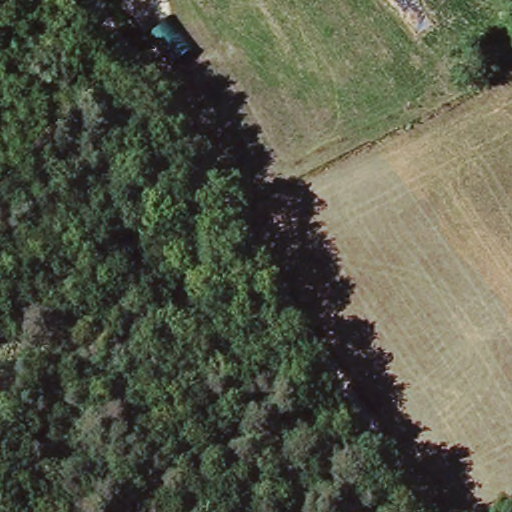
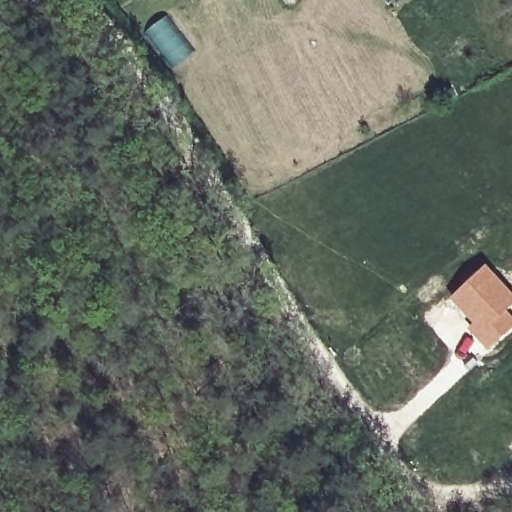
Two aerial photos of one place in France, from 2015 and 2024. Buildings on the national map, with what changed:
new [(512,292),(512,305),(507,310),(512,315),(512,328),(487,350),(467,328),(472,323),(448,298),(486,263),(512,292)]

